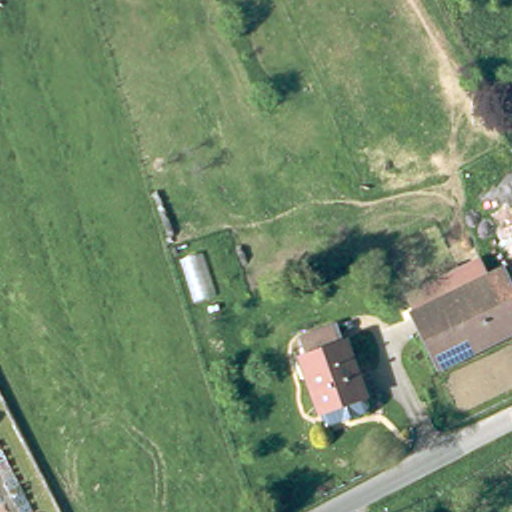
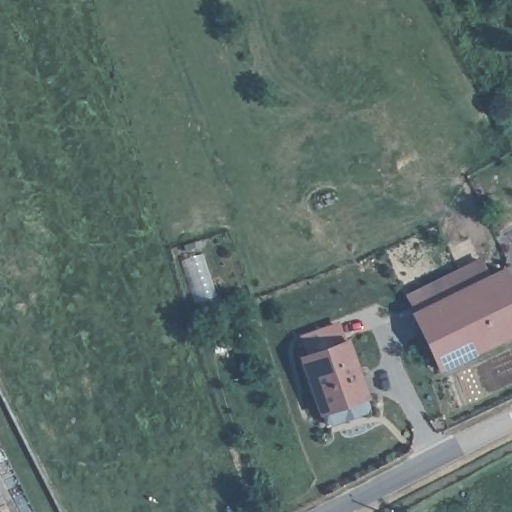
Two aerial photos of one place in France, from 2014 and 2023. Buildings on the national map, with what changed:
unchanged [(512,282),(512,334),(441,368),(414,313),(505,268),(512,282)]
unchanged [(324,416),(321,408),(302,351),(308,348),(303,332),(336,320),(342,336),(347,335),(370,400),(367,406),(343,415),(332,420),(324,416)]

